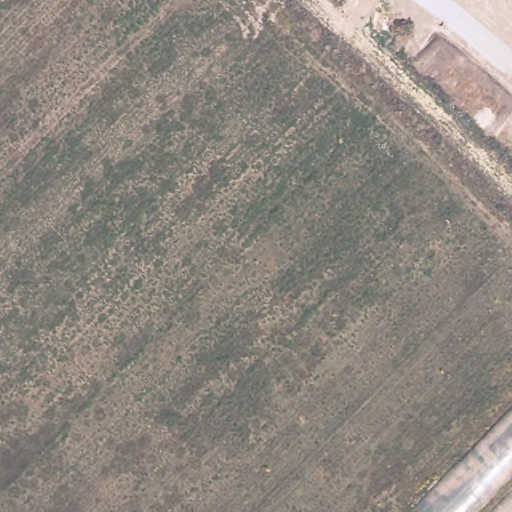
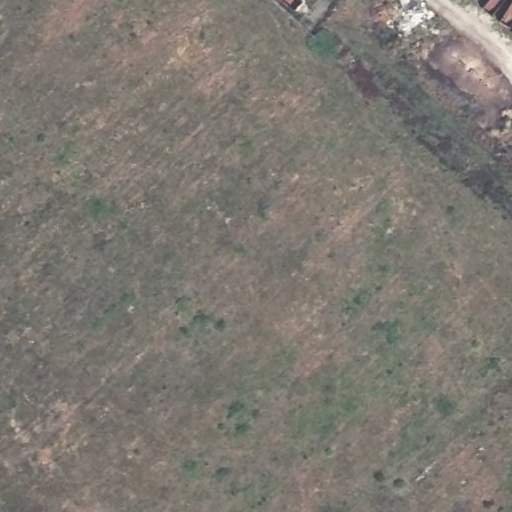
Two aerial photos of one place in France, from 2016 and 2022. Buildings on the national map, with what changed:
demolished [(512,408),(512,512),(414,512),(413,510),(512,408)]

